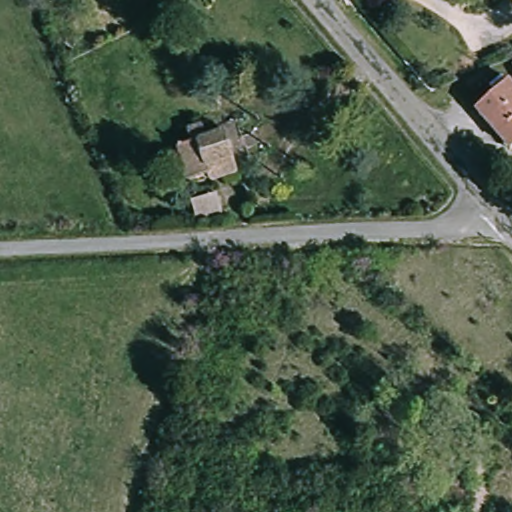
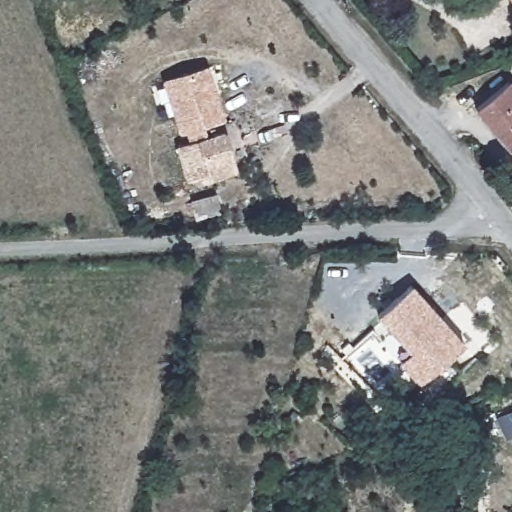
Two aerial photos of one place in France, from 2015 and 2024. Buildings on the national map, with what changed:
new [(188,130),(179,134),(161,78),(207,64),(226,117),(201,126),(188,130)]
unchanged [(512,82),(512,144),(493,123),(490,125),(475,109),(509,79),(512,82)]
unchanged [(217,179),(189,189),(174,147),(191,141),(188,130),(201,126),(206,137),(221,131),(229,157),(235,172),(217,179)]
new [(418,285),(466,350),(429,377),(395,330),(381,311),(418,285)]
new [(429,377),(415,387),(398,363),(412,353),(429,377)]
new [(512,413),(512,439),(509,440),(499,419),(512,413)]

